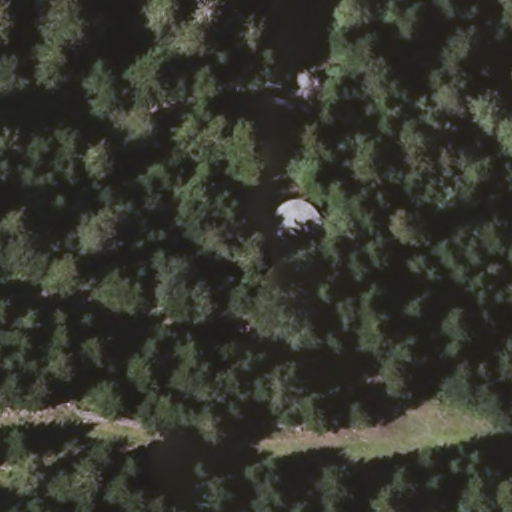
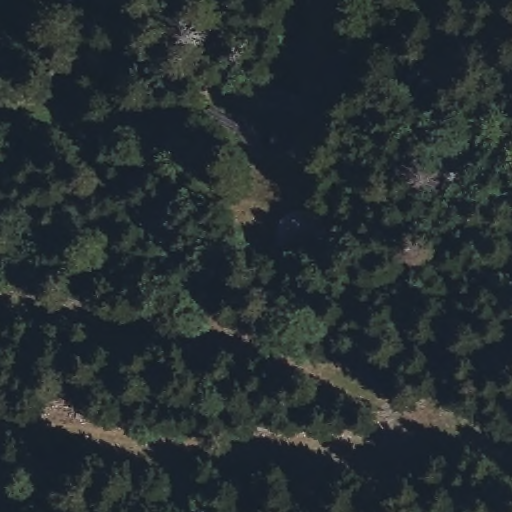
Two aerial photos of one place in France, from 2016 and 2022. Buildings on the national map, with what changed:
unchanged [(288,214),(295,212),(303,212),(312,213),(318,218),(322,227),(323,239),(319,249),(311,256),(302,259),(292,260),(285,258),(278,254),(273,247),(272,239),(272,229),(280,219),(288,214)]

